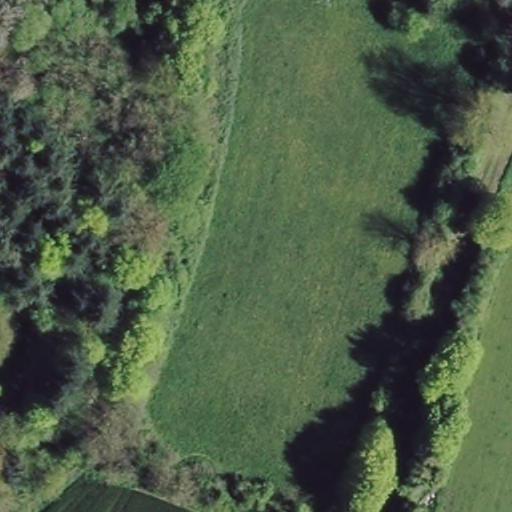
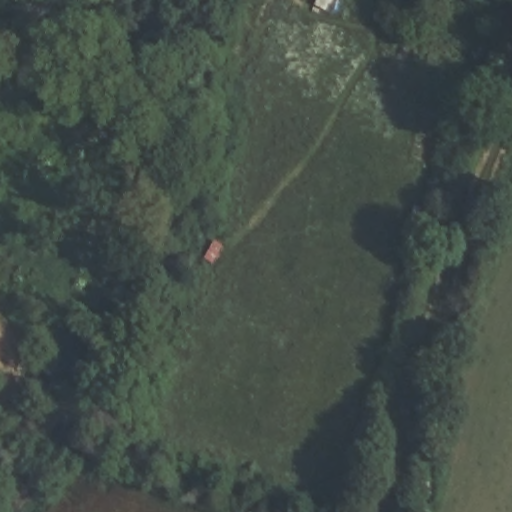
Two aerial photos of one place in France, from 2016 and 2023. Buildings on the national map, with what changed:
[]

